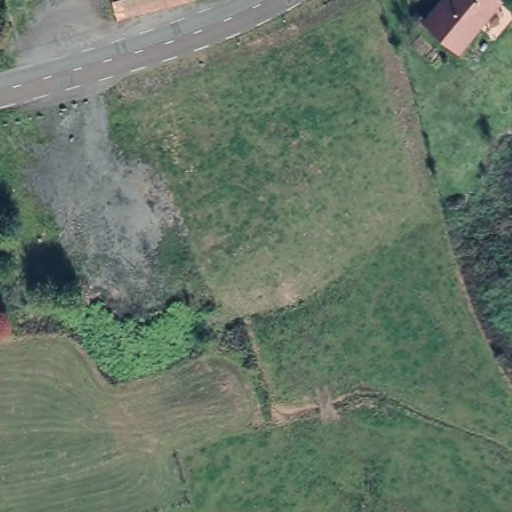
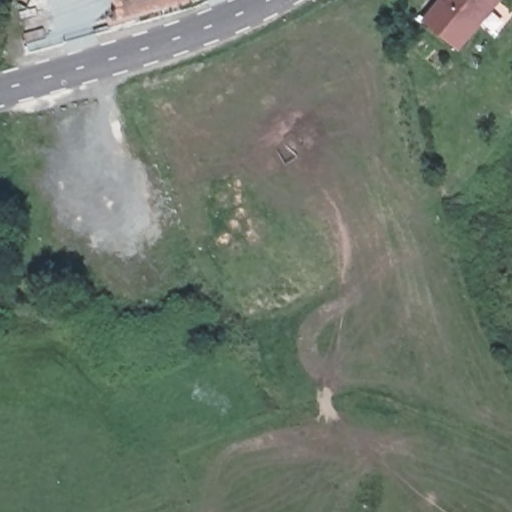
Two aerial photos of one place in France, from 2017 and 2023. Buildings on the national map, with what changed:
unchanged [(120,0),(164,0),(122,12),(120,0)]
unchanged [(421,24),(438,0),(495,0),(459,51),(421,24)]

